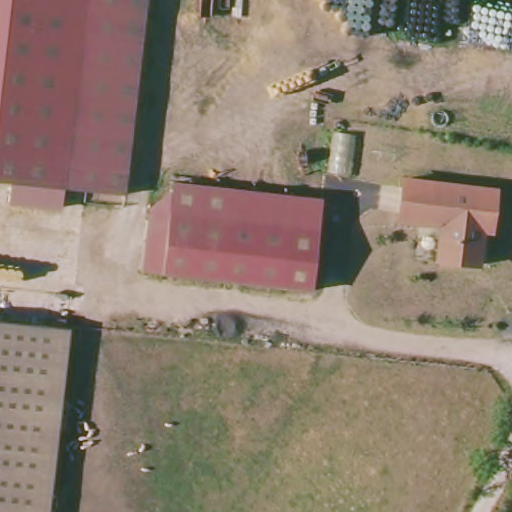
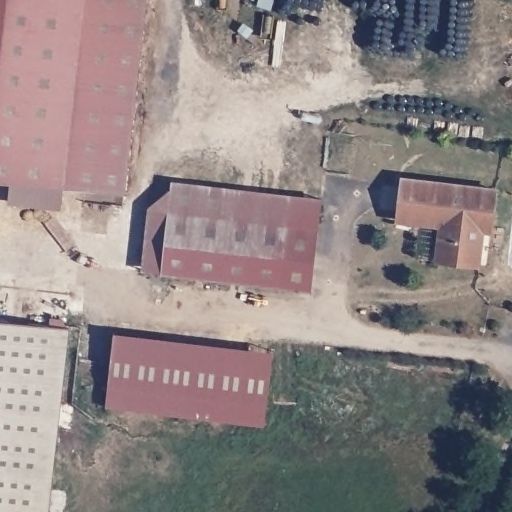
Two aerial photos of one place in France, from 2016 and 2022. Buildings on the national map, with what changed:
unchanged [(70,185),(0,178),(0,0),(89,0),(70,185)]
unchanged [(124,195),(70,185),(89,0),(146,0),(124,195)]
unchanged [(497,191),(494,236),(482,235),(480,268),(434,263),(435,228),(394,224),(397,181),(497,191)]
unchanged [(151,212),(171,214),(174,182),(321,200),(311,292),(163,275),(144,272),(151,212)]
unchanged [(52,512),(0,512),(0,321),(75,330),(52,512)]
new [(108,387),(113,332),(273,351),(268,404),(108,387)]

